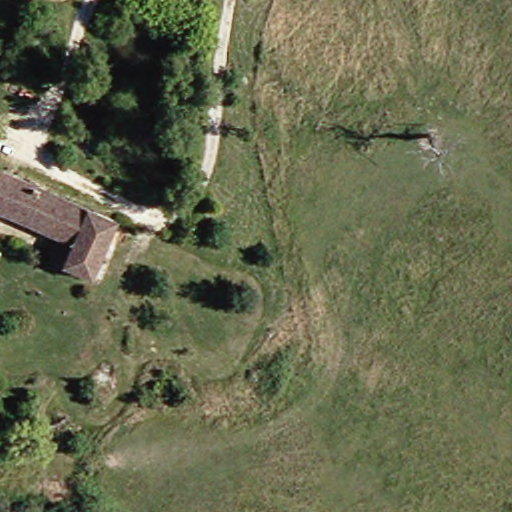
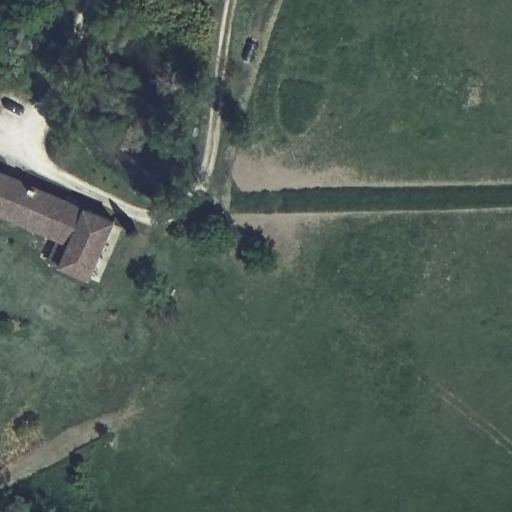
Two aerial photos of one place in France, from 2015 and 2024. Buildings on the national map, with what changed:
unchanged [(91,278),(50,261),(58,242),(0,216),(0,171),(116,220),(91,278)]

